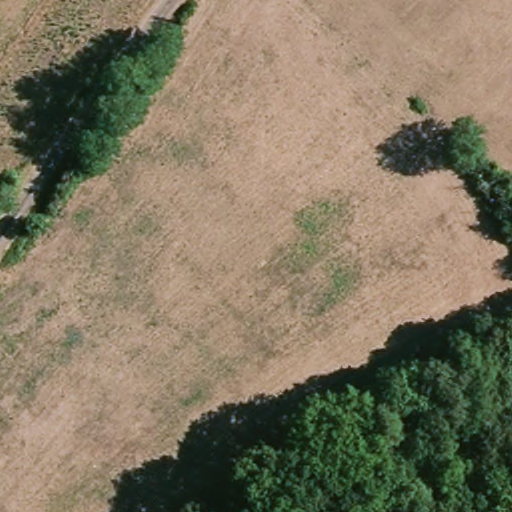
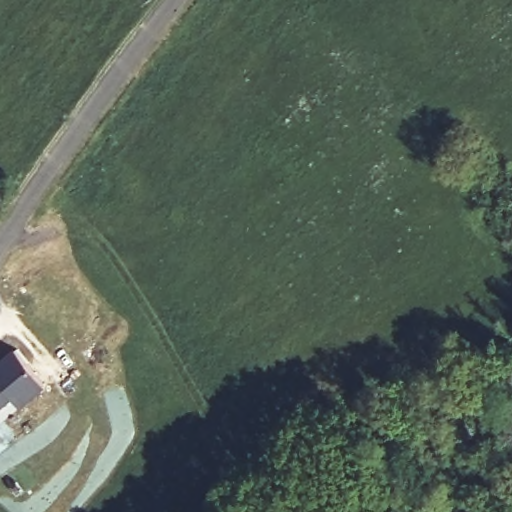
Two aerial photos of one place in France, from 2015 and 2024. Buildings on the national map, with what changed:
new [(27,407),(17,398),(0,413),(0,362),(17,347),(52,385),(27,407)]
unchanged [(473,452),(455,465),(444,450),(461,437),(473,452)]

